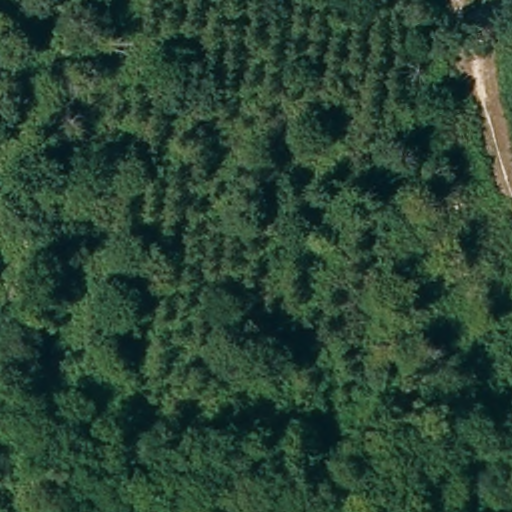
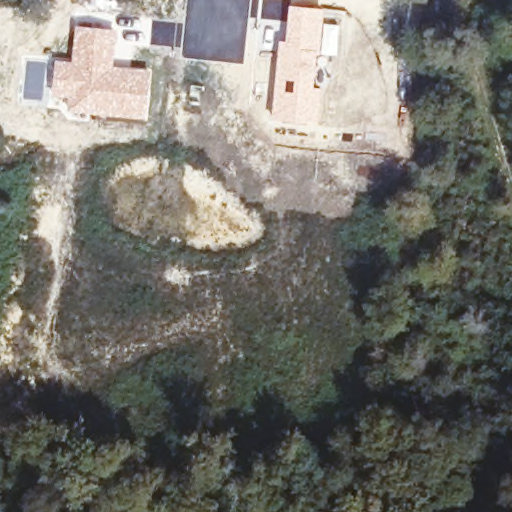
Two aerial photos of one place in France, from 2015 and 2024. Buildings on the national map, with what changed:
new [(278,39),(284,40),(288,4),(325,9),(324,20),(340,22),(336,56),(319,54),(315,85),(321,86),(317,123),(270,118),(278,39)]
new [(54,58),(70,60),(74,24),(117,29),(113,64),(151,69),(146,119),(64,111),(65,100),(51,98),(54,58)]

